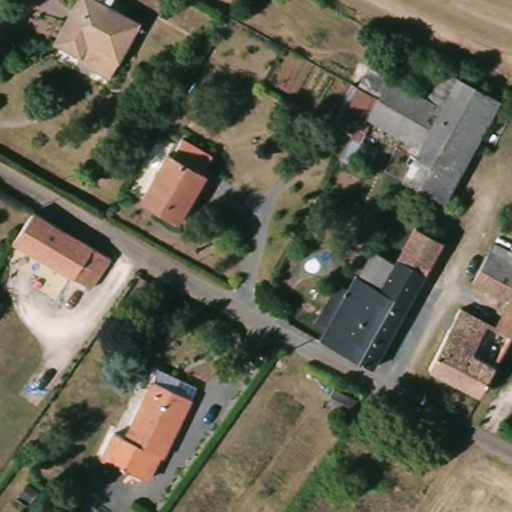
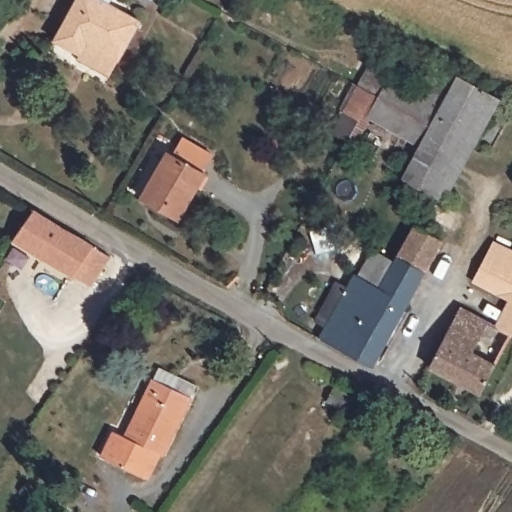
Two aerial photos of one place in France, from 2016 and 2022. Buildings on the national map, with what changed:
unchanged [(76,62),(80,55),(54,41),(77,0),(111,0),(107,6),(137,23),(116,61),(106,78),(76,62)]
unchanged [(337,125),(358,86),(359,85),(349,79),(359,61),(369,66),(427,99),(445,69),(500,99),(466,162),(425,139),(421,147),(371,119),(361,139),(348,162),(338,156),(348,138),(351,133),(337,125)]
unchanged [(177,220),(140,198),(167,152),(172,155),(182,138),(212,156),(202,172),(205,174),(177,220)]
unchanged [(384,214),(402,179),(421,147),(425,139),(466,162),(443,202),(432,196),(413,185),(394,220),(384,214)]
unchanged [(12,242),(35,212),(94,247),(75,277),(12,242)]
unchanged [(436,238),(437,234),(444,237),(423,275),(396,259),(413,229),(415,227),(436,238)]
unchanged [(511,336),(497,328),(511,303),(473,282),(481,265),(492,243),(512,253),(512,334),(511,336)]
unchanged [(357,276),(372,250),(394,262),(396,259),(423,275),(394,328),(372,368),(319,339),(325,329),(313,322),(336,282),(347,288),(355,274),(357,276)]
unchanged [(487,323),(471,354),(495,366),(480,396),(430,369),(461,309),(487,323)]
unchanged [(154,464),(147,479),(145,477),(101,457),(114,432),(125,437),(152,380),(157,369),(196,388),(191,398),(171,441),(164,457),(161,455),(159,454),(154,464)]

